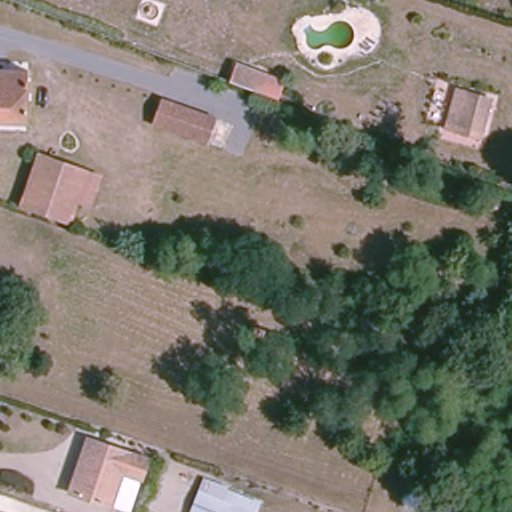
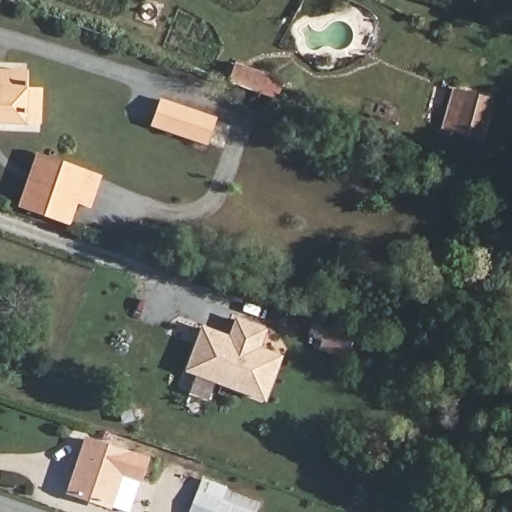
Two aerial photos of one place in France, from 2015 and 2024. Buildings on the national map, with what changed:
unchanged [(279,78),(272,100),(226,83),(233,62),(279,78)]
unchanged [(38,71),(37,119),(0,119),(0,71),(38,71)]
unchanged [(482,130),(445,119),(448,107),(454,89),(465,92),(491,100),(482,130)]
unchanged [(218,117),(211,141),(160,124),(168,100),(218,117)]
unchanged [(70,219),(27,206),(27,204),(33,185),(43,155),(89,170),(77,207),(70,219)]
new [(200,325),(228,334),(235,317),(266,328),(260,347),(282,355),(265,401),(185,371),(200,325)]
new [(325,326),(348,334),(341,354),(318,346),(325,326)]
unchanged [(104,501),(65,488),(69,473),(83,432),(143,452),(130,493),(125,508),(104,501)]
unchanged [(205,478),(230,488),(229,491),(260,504),(257,512),(192,512),(205,478)]

